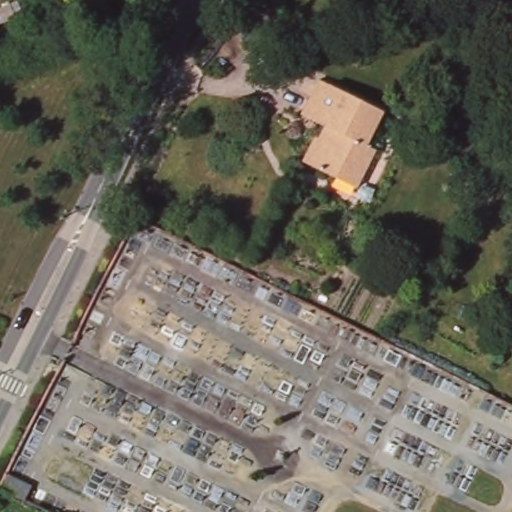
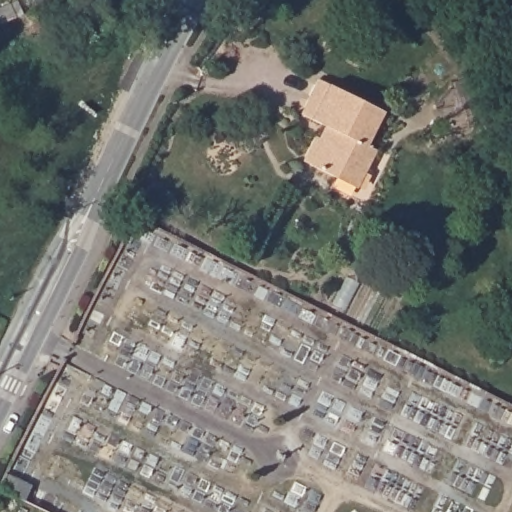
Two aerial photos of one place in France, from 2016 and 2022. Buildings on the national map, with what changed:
unchanged [(325,74),(390,107),(373,141),(381,145),(362,183),(308,155),(321,130),(325,132),(331,120),(307,107),(325,74)]
unchanged [(469,102),(454,105),(451,84),(466,82),(469,102)]
unchanged [(14,472),(40,483),(33,500),(6,487),(14,472)]

